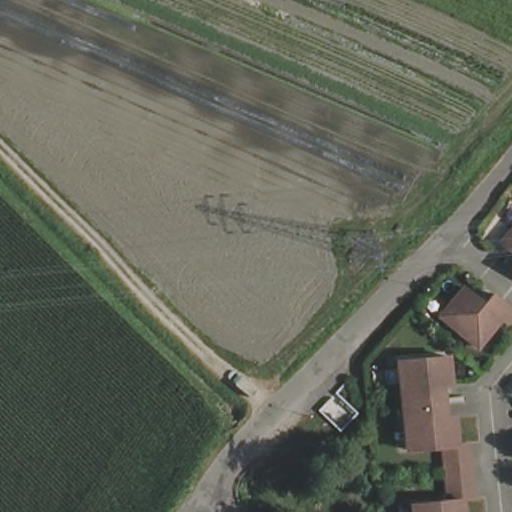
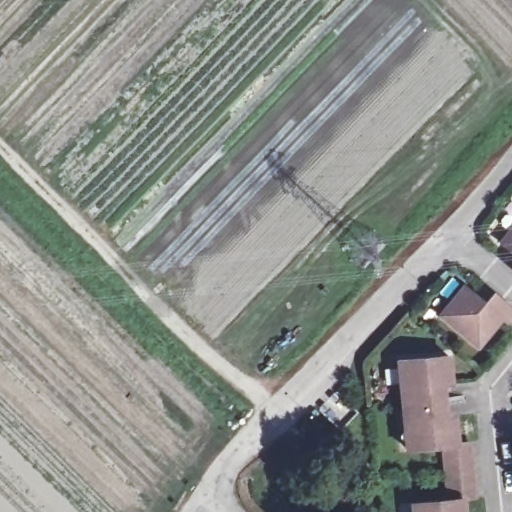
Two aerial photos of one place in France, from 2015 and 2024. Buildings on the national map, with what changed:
unchanged [(499,238),(508,226),(512,222),(512,249),(499,238)]
unchanged [(511,265),(512,264),(512,266),(511,265)]
unchanged [(462,283),(483,300),(492,289),(512,306),(512,311),(505,319),(501,315),(477,344),(439,312),(462,283)]
unchanged [(431,387),(434,418),(452,417),(455,446),(466,446),(472,499),(459,500),(460,512),(408,512),(408,505),(444,501),(441,447),(403,451),(400,422),(404,420),(402,387),(397,387),(394,360),(446,356),(449,386),(431,387)]

